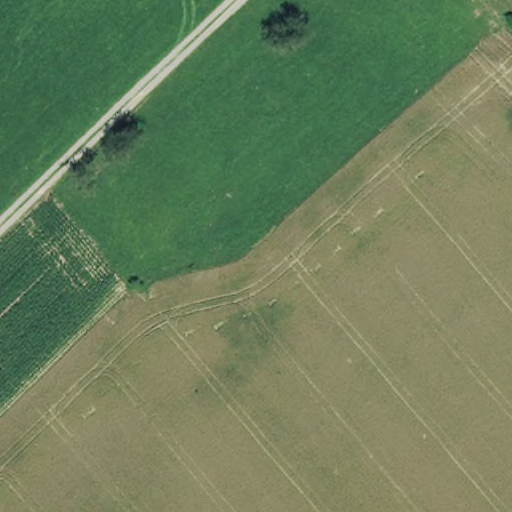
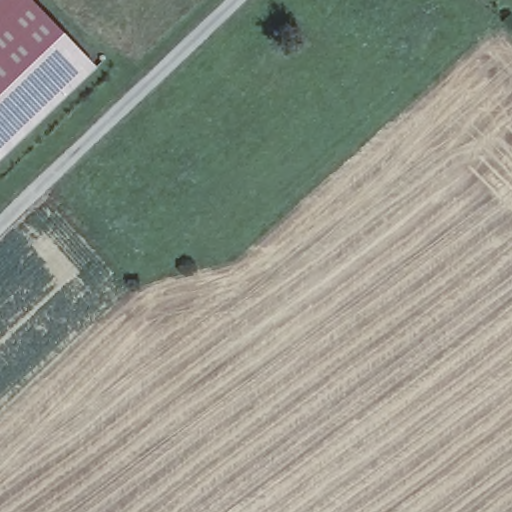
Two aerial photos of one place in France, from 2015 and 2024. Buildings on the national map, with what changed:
new [(95,66),(0,157),(0,0),(31,0),(95,66)]

